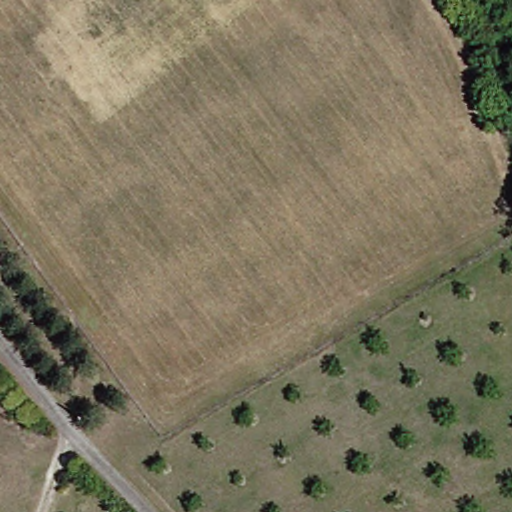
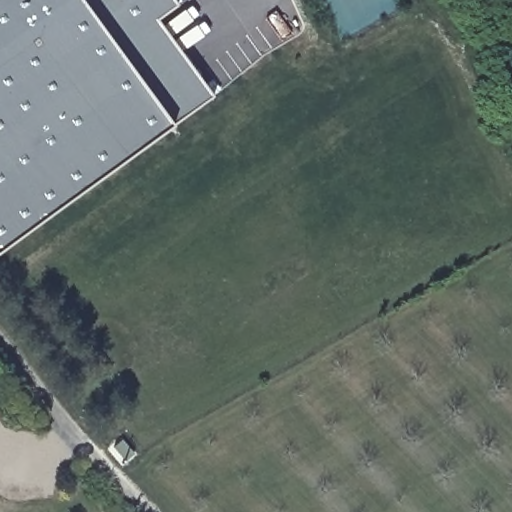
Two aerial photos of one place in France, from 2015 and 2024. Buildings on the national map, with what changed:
new [(155,21),(212,98),(171,128),(0,253),(0,0),(170,0),(175,7),(155,21)]

